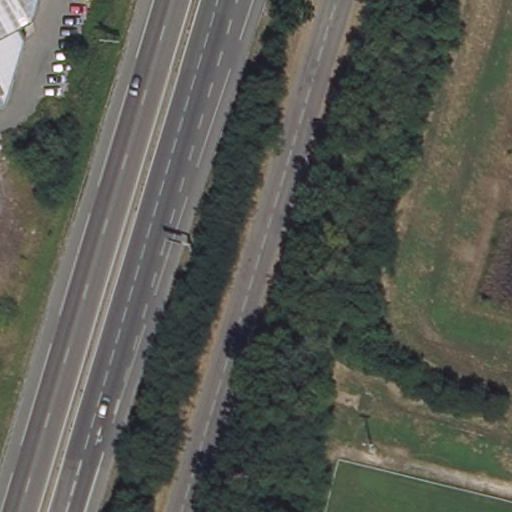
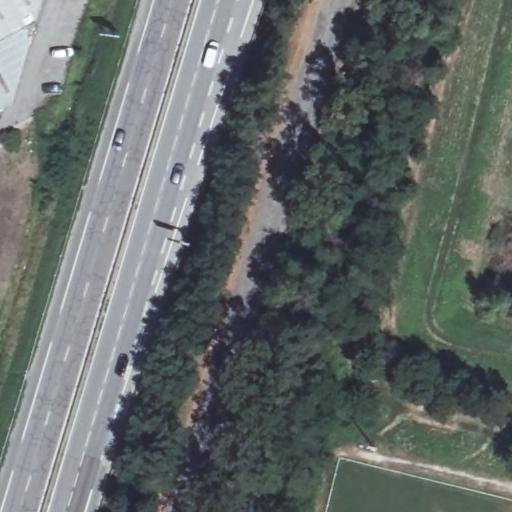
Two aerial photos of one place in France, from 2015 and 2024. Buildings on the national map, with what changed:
unchanged [(13,104),(0,111),(0,0),(44,0),(36,23),(26,29),(31,40),(13,104)]

